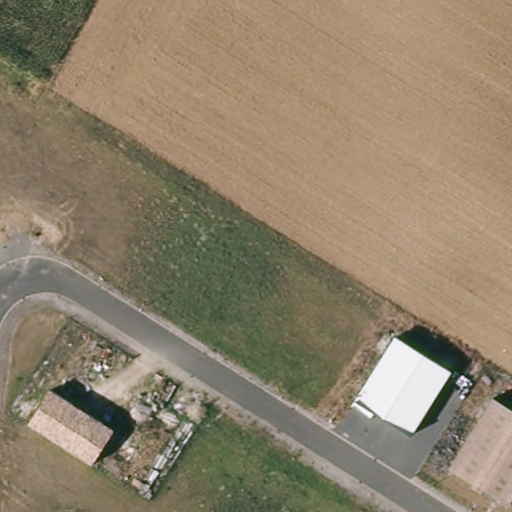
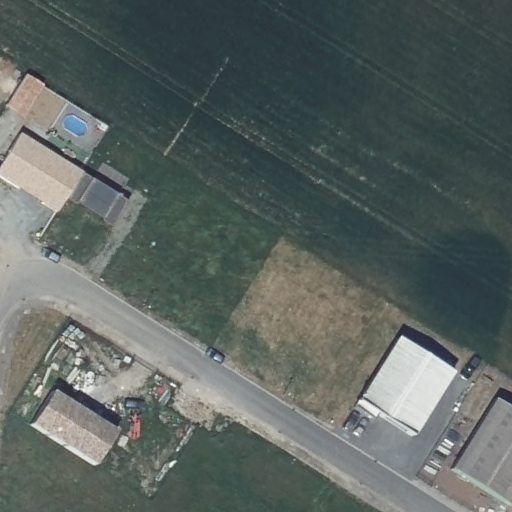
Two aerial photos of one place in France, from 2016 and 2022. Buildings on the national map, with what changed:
new [(26,73),(43,83),(25,113),(7,102),(26,73)]
new [(0,164),(20,132),(81,171),(56,210),(41,201),(19,187),(0,175),(0,164)]
unchanged [(456,369),(416,431),(360,394),(398,335),(456,369)]
unchanged [(119,429),(95,464),(33,421),(54,388),(119,429)]
unchanged [(512,406),(512,500),(453,464),(498,397),(512,406)]

